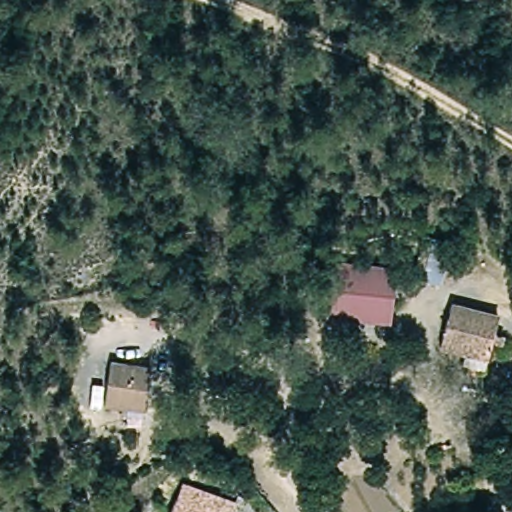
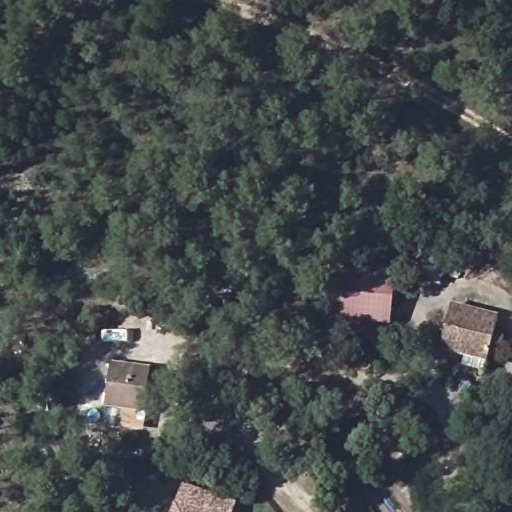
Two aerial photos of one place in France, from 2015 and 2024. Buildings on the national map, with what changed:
unchanged [(398,271),(395,328),(323,322),(325,284),(338,284),(340,262),(398,271)]
unchanged [(501,323),(485,366),(441,350),(456,307),(501,323)]
unchanged [(153,368),(149,411),(109,406),(113,363),(153,368)]
unchanged [(233,512),(172,512),(182,483),(236,504),(233,512)]

